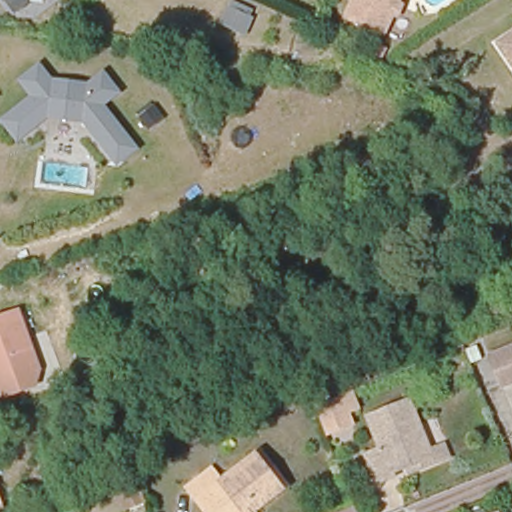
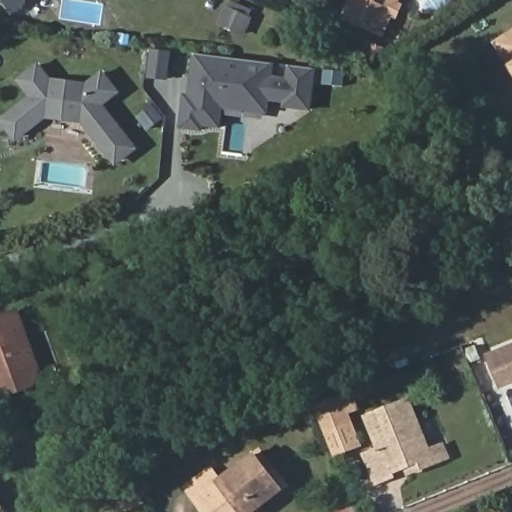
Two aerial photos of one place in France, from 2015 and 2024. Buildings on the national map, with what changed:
unchanged [(5,0),(28,0),(27,5),(22,9),(15,14),(10,7),(5,0)]
unchanged [(386,15),(376,36),(338,18),(347,0),(393,0),(390,6),(395,9),(391,17),(386,15)]
unchanged [(248,17),(240,34),(217,24),(225,6),(248,17)]
unchanged [(491,42),(512,28),(512,74),(491,42)]
new [(283,107),(284,102),(271,101),(270,115),(265,114),(263,130),(245,127),(246,112),(225,110),(222,129),(205,127),(205,132),(179,129),(184,93),(189,94),(194,54),(195,54),(275,63),(276,64),(275,76),(287,77),(288,65),(290,65),(316,68),(318,69),(313,112),(283,107)]
unchanged [(104,71),(123,95),(106,107),(140,150),(115,167),(81,123),(47,119),(16,142),(0,122),(0,119),(29,96),(16,80),(40,62),(52,78),(87,83),(104,71)]
new [(323,85),(325,69),(335,71),(346,72),(345,87),(334,86),(323,85)]
new [(154,105),(165,119),(156,125),(149,131),(137,117),(145,111),(154,105)]
unchanged [(35,388),(0,401),(0,315),(19,309),(41,368),(35,388)]
unchanged [(500,392),(487,362),(512,352),(512,386),(500,392)]
unchanged [(313,403),(340,394),(350,424),(325,433),(313,403)]
unchanged [(381,476),(383,478),(365,485),(355,457),(371,451),(359,420),(401,402),(421,455),(440,447),(445,457),(425,465),(406,473),(403,467),(381,476)]
unchanged [(254,453),(281,488),(251,512),(205,512),(196,501),(191,505),(180,491),(205,471),(215,483),(254,453)]
unchanged [(131,477),(140,501),(120,508),(111,486),(131,477)]
unchanged [(0,509),(0,500),(3,507),(0,509)]
unchanged [(350,507),(353,512),(337,512),(350,507)]

